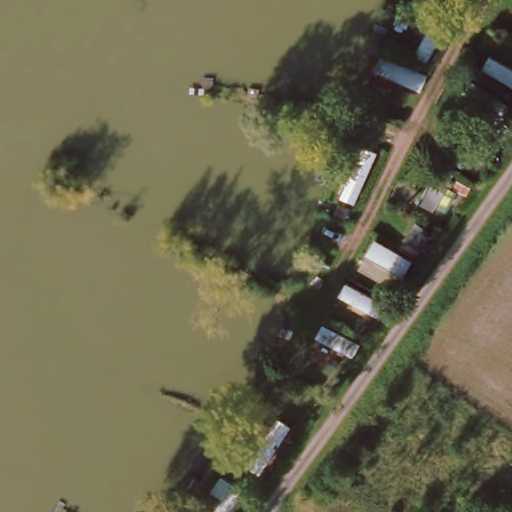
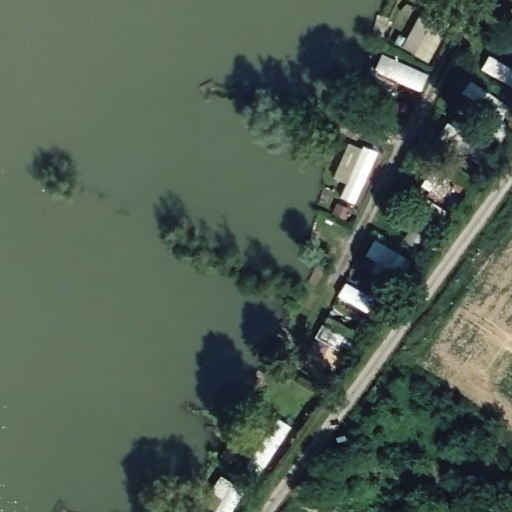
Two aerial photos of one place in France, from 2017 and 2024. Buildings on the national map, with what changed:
unchanged [(422,209),(430,198),(420,191),(437,167),(468,187),(461,201),(452,197),(441,218),(422,209)]
unchanged [(421,227),(434,236),(423,251),(410,241),(421,227)]
unchanged [(265,443),(275,450),(259,471),(249,464),(265,443)]

